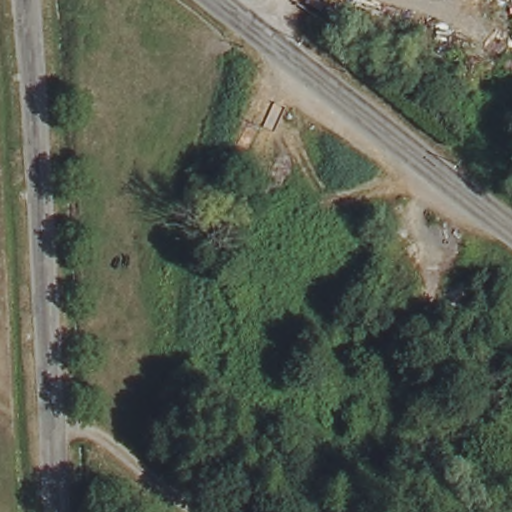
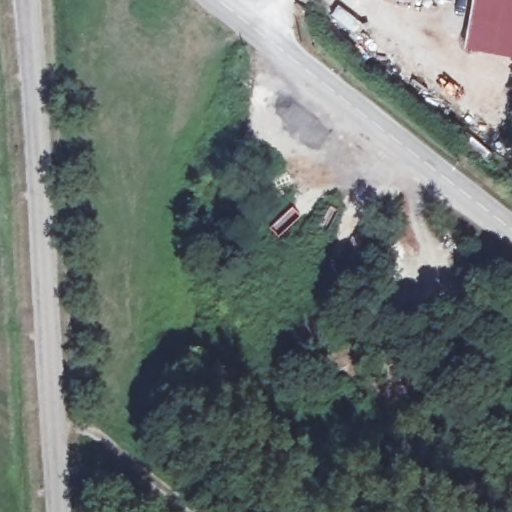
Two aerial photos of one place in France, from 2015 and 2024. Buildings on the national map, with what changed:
new [(512,0),(512,54),(467,47),(476,0),(512,0)]

